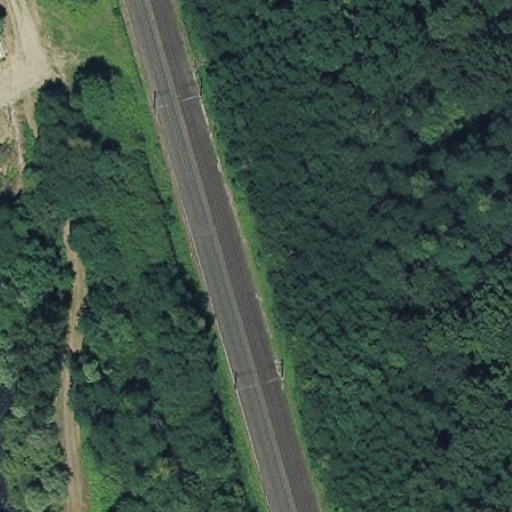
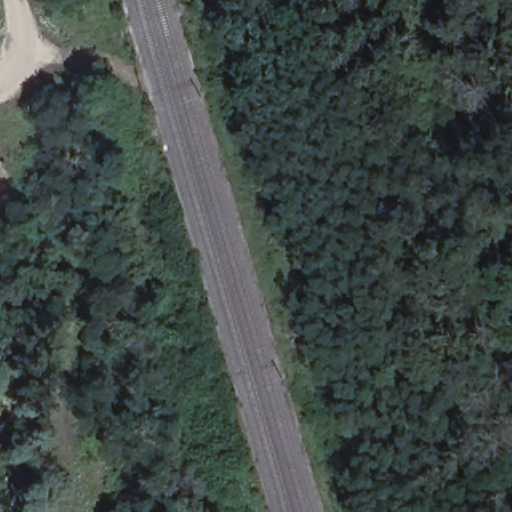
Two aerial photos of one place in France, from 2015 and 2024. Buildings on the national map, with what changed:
unchanged [(340,349),(338,342),(346,340),(348,346),(340,349)]

